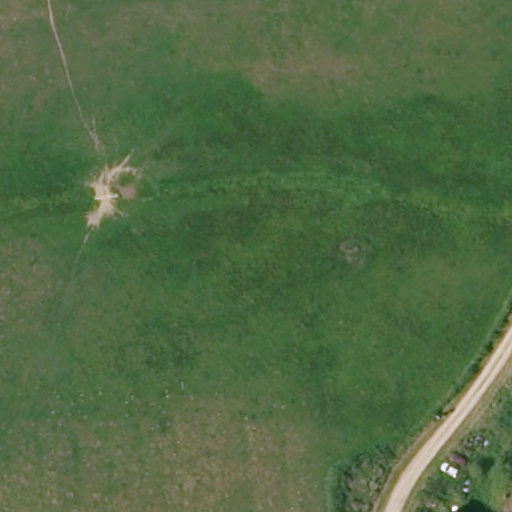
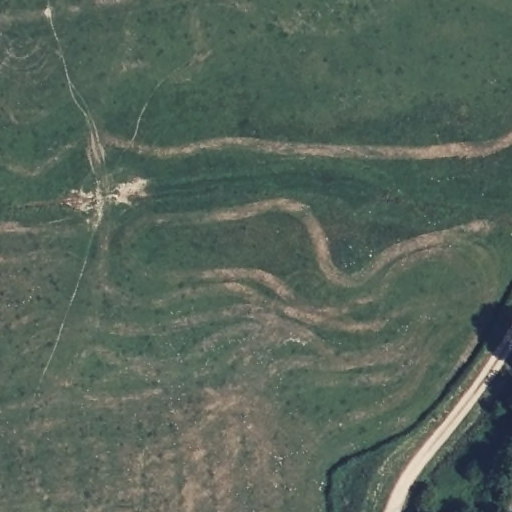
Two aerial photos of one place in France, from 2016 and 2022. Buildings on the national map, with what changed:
[]

